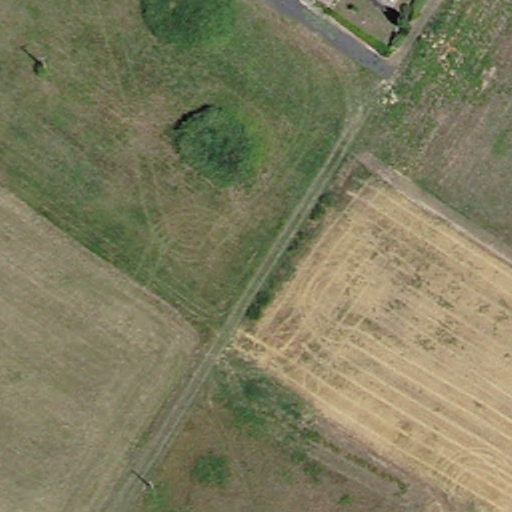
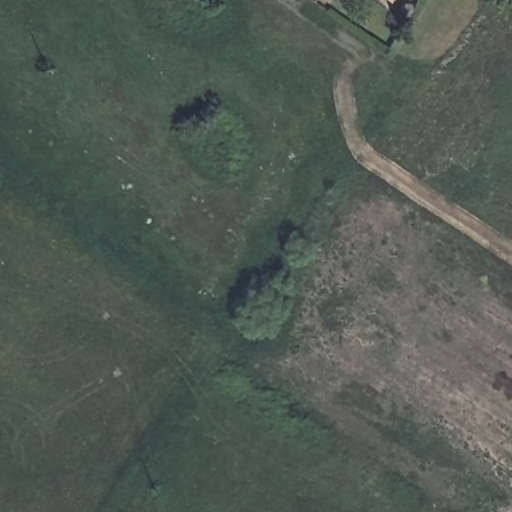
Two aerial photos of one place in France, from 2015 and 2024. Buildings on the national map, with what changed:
[]

